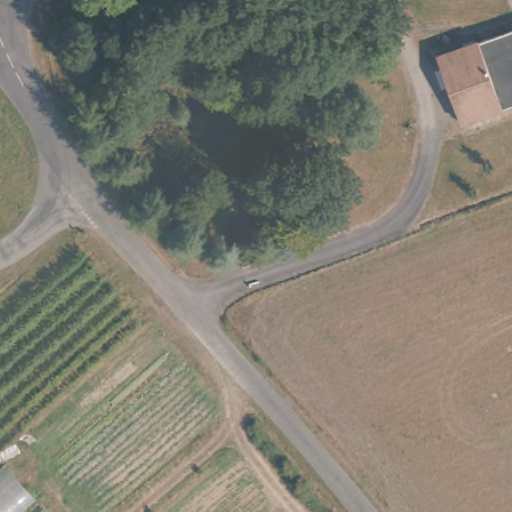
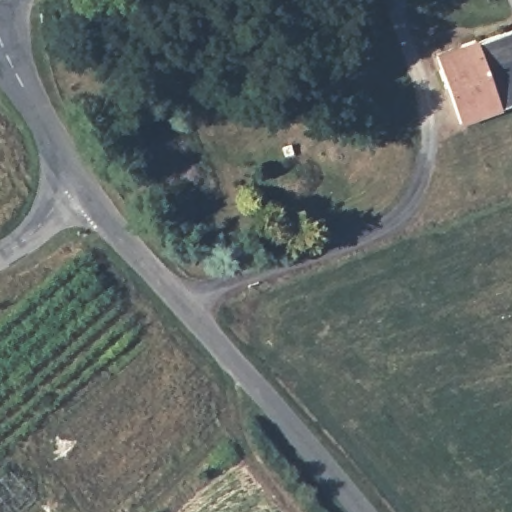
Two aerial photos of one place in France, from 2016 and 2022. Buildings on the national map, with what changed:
unchanged [(512,110),(464,125),(441,56),(512,33),(512,110)]
demolished [(10,457),(42,492),(20,512),(0,512),(0,466),(10,457)]
unchanged [(60,512),(39,512),(51,501),(60,512)]

